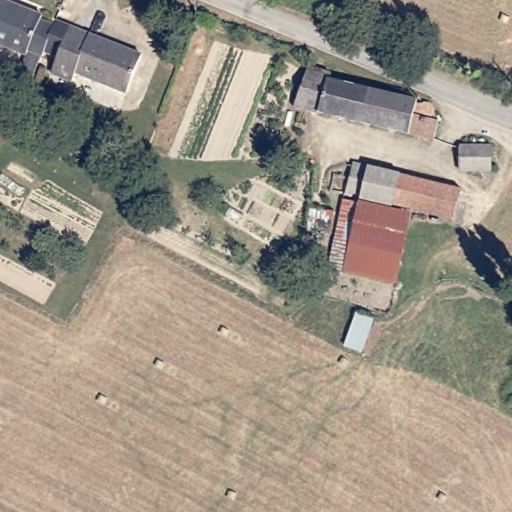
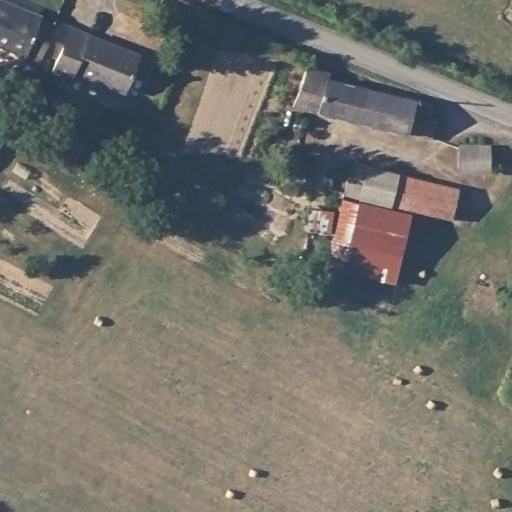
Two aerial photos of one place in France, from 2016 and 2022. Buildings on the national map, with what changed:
unchanged [(0,0),(17,0),(47,13),(45,18),(59,24),(46,51),(45,54),(31,48),(29,52),(0,39),(0,0)]
unchanged [(53,72),(60,58),(46,51),(59,24),(61,20),(74,25),(144,56),(127,93),(77,70),(72,81),(53,72)]
unchanged [(300,102),(289,98),(306,58),(315,61),(327,67),(327,70),(412,95),(412,97),(420,98),(427,100),(430,103),(431,113),(429,118),(426,134),(300,102)]
unchanged [(460,160),(461,138),(488,139),(487,160),(460,160)]
unchanged [(336,187),(337,172),(352,177),(355,161),(461,185),(456,214),(432,209),(352,191),(336,187)]
unchanged [(345,201),(348,195),(413,210),(398,278),(332,262),(345,201)]
unchanged [(311,225),(314,204),(337,208),(335,217),(332,230),(327,229),(311,225)]

